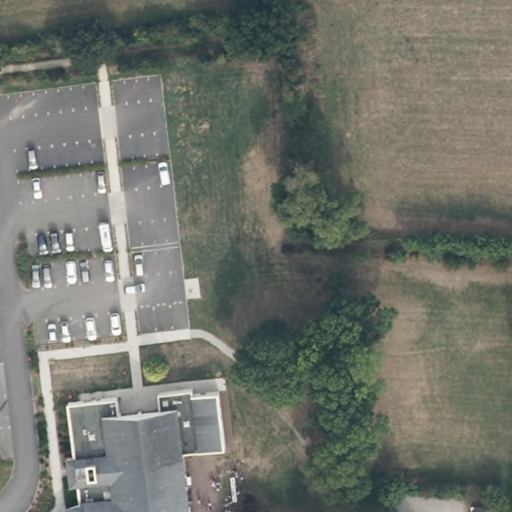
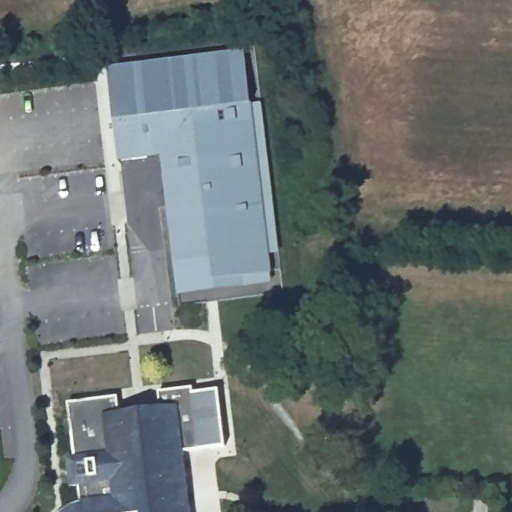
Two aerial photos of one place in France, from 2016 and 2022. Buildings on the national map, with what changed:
new [(165,158),(151,160),(136,161),(122,163),(122,155),(118,123),(116,107),(112,71),(141,68),(141,67),(145,66),(145,67),(166,65),(166,64),(170,63),(170,65),(191,62),(191,61),(194,60),(195,62),(216,59),(216,58),(219,57),(219,59),(249,56),(257,125),(258,125),(258,128),(257,128),(263,179),(264,179),(264,183),(266,204),(267,204),(267,208),(269,231),(270,231),(270,234),(270,235),(274,276),(249,279),(249,280),(246,280),(246,279),(218,283),(214,246),(176,250),(171,209),(169,195),(164,151),(165,158)]
unchanged [(74,508),(76,507),(72,481),(66,482),(62,454),(70,453),(63,397),(114,391),(116,408),(158,402),(156,385),(190,381),(190,387),(197,444),(180,446),(188,512),(68,512),(70,511),(74,508)]
unchanged [(190,387),(216,384),(222,441),(197,444),(190,387)]
unchanged [(492,512),(473,512),(474,489),(493,490),(492,512)]

